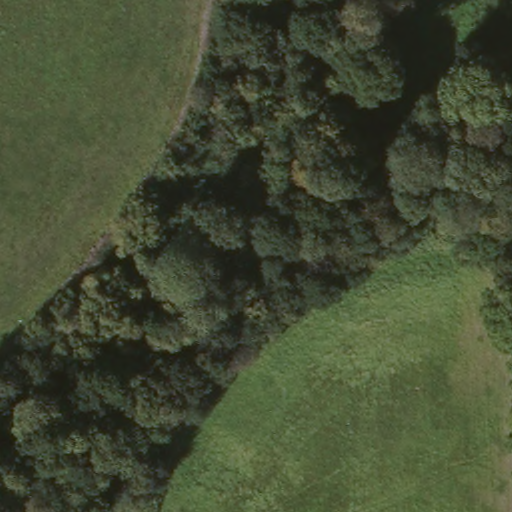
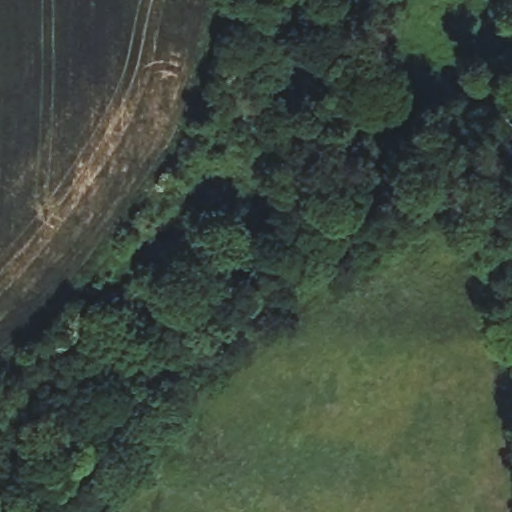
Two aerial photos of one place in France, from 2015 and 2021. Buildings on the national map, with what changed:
[]

